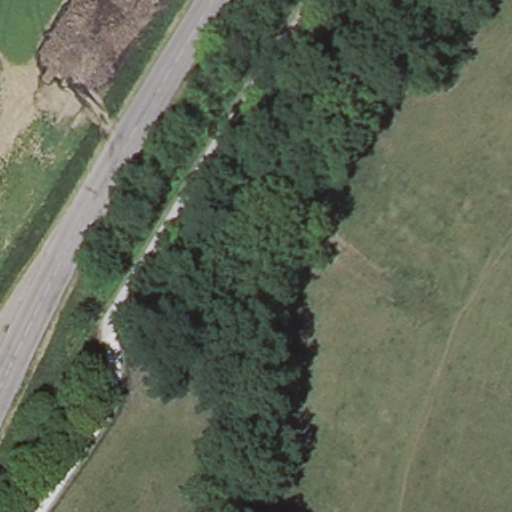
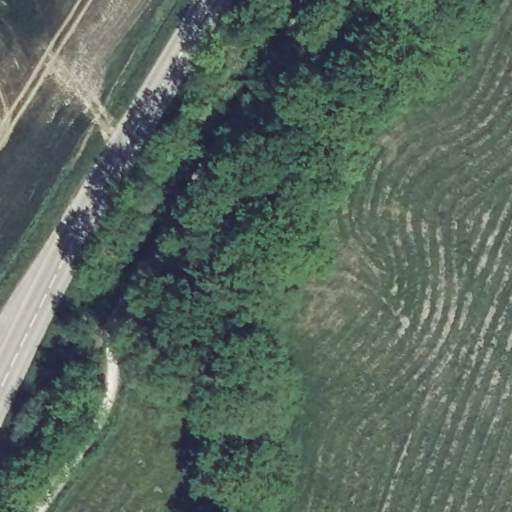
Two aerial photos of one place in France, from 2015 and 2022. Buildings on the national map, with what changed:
unchanged [(296,135),(286,146),(274,137),(284,125),(296,135)]

